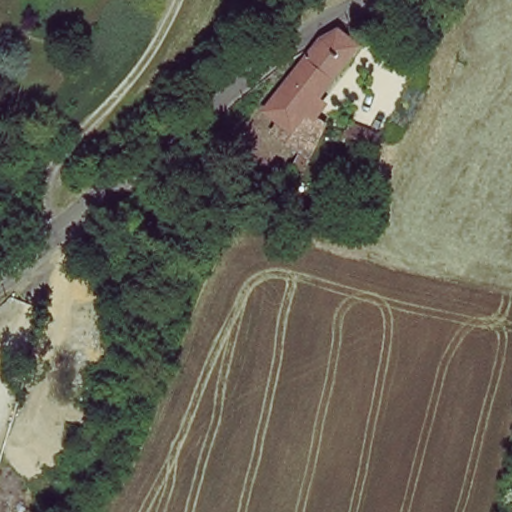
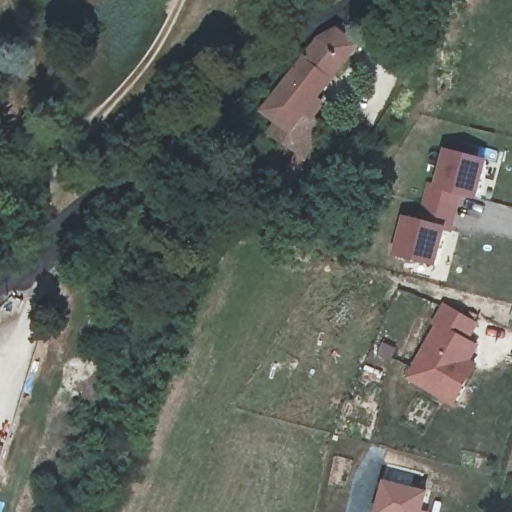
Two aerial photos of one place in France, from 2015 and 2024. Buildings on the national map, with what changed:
unchanged [(339,35),(356,47),(311,112),(328,125),(299,197),(281,190),(297,157),(267,140),(277,124),(265,114),(307,57),(339,35)]
unchanged [(358,119),(386,129),(383,140),(354,131),(358,119)]
new [(402,215),(418,218),(427,181),(435,184),(443,147),(488,160),(479,200),(462,195),(453,233),(446,231),(437,267),(393,255),(402,215)]
new [(480,318),(470,338),(478,343),(469,361),(480,366),(463,399),(409,371),(444,300),(480,318)]
new [(383,480),(429,490),(424,511),(426,512),(375,512),(383,480)]

